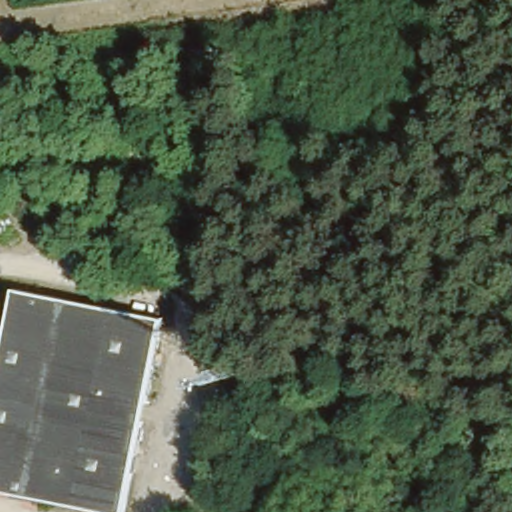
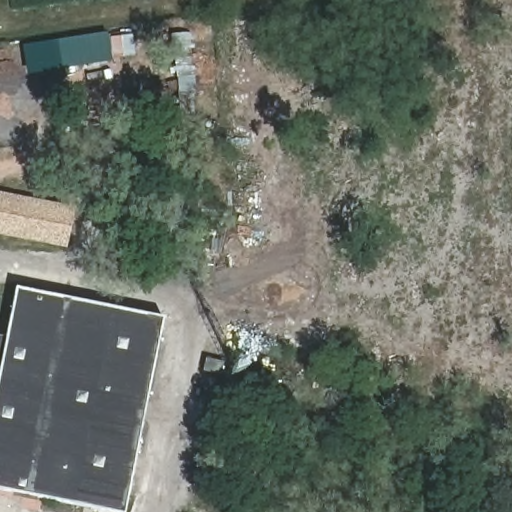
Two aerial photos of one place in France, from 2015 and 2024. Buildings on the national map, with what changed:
new [(109,33),(114,62),(28,74),(24,45),(109,33)]
new [(0,193),(75,207),(67,249),(0,236),(0,193)]
unchanged [(107,512),(0,491),(0,341),(10,290),(158,321),(120,512),(107,512)]

